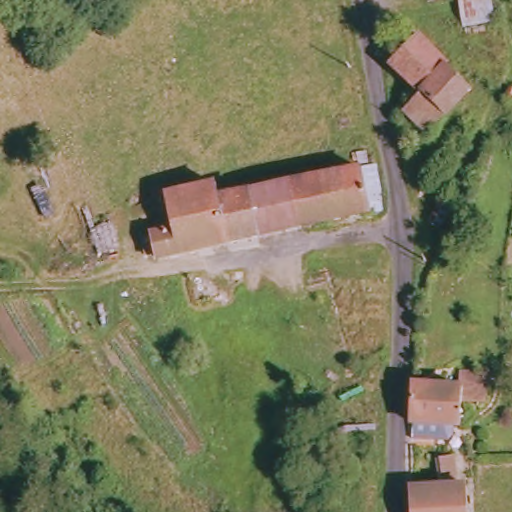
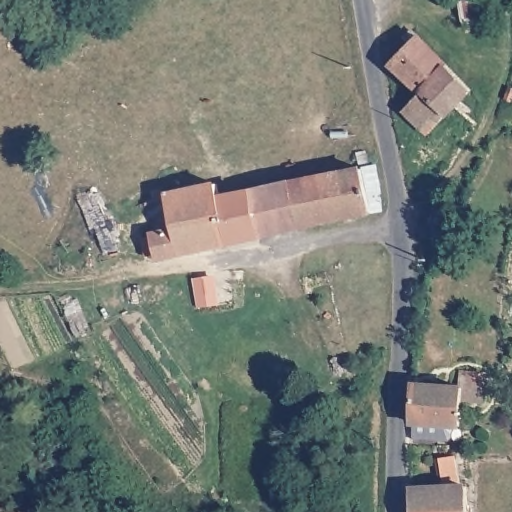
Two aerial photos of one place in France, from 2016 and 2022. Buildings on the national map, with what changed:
unchanged [(467,31),(464,0),(499,0),(501,27),(467,31)]
unchanged [(435,136),(413,114),(425,100),(392,65),(422,41),(475,98),(435,136)]
unchanged [(292,185),(367,170),(377,169),(384,216),(300,231),(292,185)]
unchanged [(150,225),(167,223),(167,211),(172,210),(171,192),(218,185),(221,199),(292,185),(300,231),(154,255),(150,225)]
unchanged [(415,387),(464,384),(465,379),(489,380),(489,402),(467,401),(467,425),(416,426),(415,387)]
unchanged [(415,488),(467,487),(469,512),(416,512),(415,488)]

